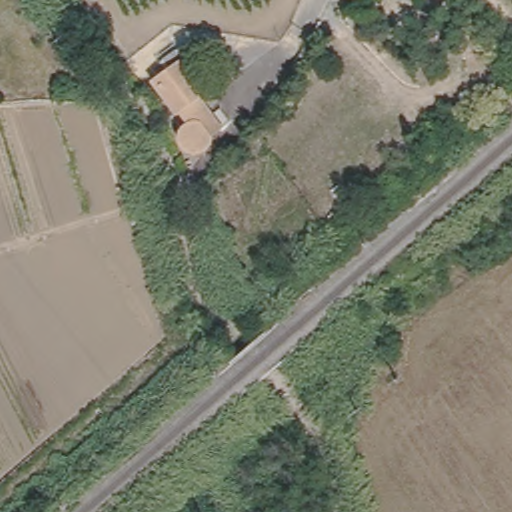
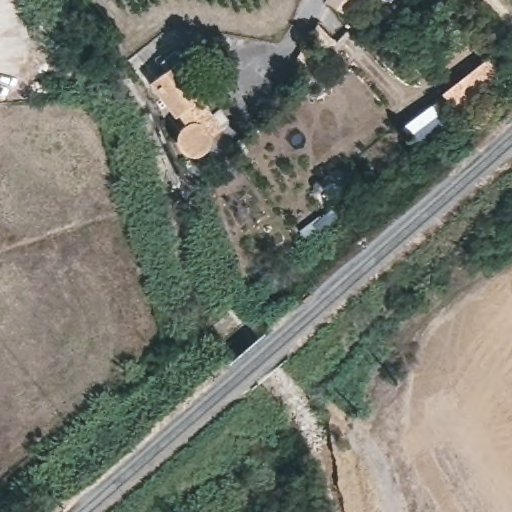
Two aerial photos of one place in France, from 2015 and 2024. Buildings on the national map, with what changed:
unchanged [(215,134),(215,137),(214,139),(213,142),(211,145),(209,147),(206,149),(203,151),(199,150),(195,150),(192,148),(190,147),(188,145),(187,143),(186,142),(185,140),(185,138),(184,136),(184,134),(185,132),(185,130),(186,128),(187,125),(189,124),(191,121),(184,109),(182,110),(157,73),(186,54),(211,91),(205,94),(216,112),(226,127),(215,134)]

